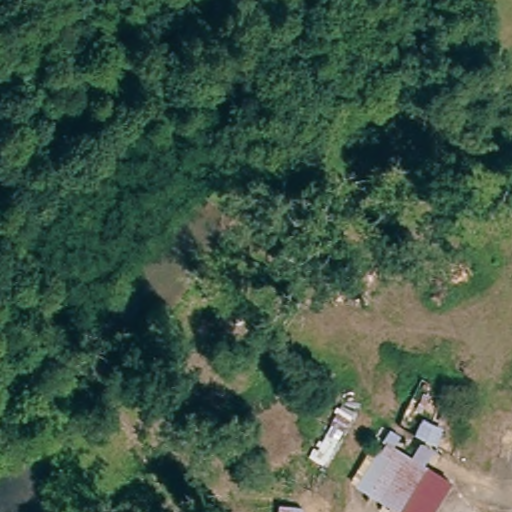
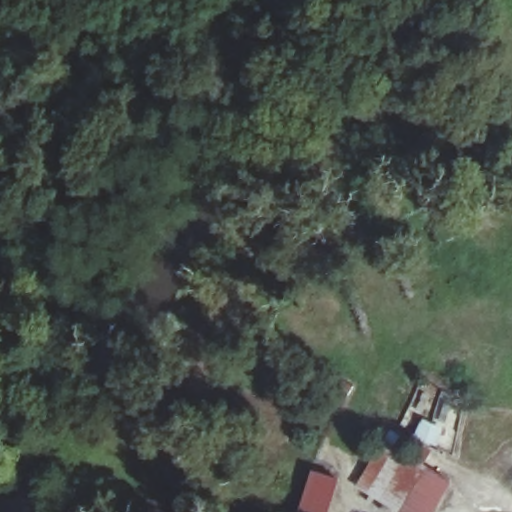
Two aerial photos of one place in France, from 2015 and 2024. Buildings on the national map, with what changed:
unchanged [(356,482),(375,449),(380,443),(449,490),(436,512),(402,512),(356,482)]
new [(329,512),(299,512),(313,470),(339,479),(329,512)]

